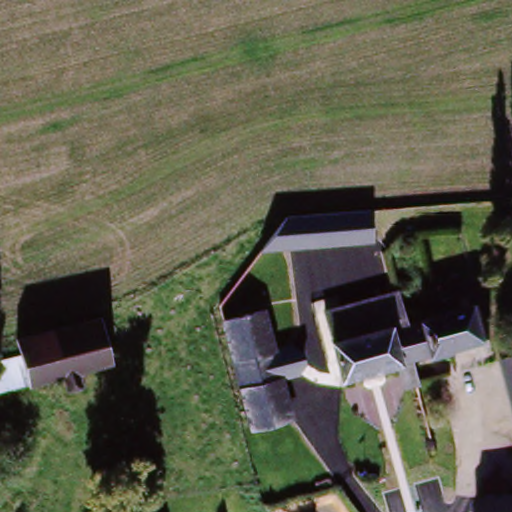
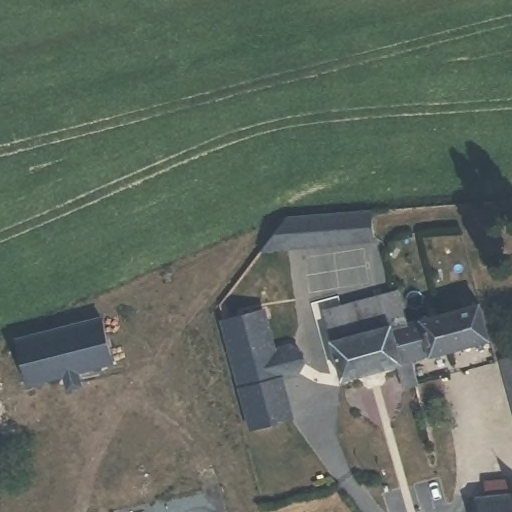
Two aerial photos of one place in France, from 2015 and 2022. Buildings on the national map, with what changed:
unchanged [(374,202),(375,208),(377,232),(305,244),(268,248),(296,211),(374,202)]
unchanged [(400,362),(342,376),(331,337),(326,311),(387,293),(396,291),(405,321),(418,317),(480,300),(490,336),(428,353),(418,356),(413,357),(417,380),(405,382),(400,362)]
unchanged [(282,420),(244,428),(221,320),(257,313),(266,353),(283,349),(292,357),(295,366),(290,378),(274,381),(282,420)]
unchanged [(17,339),(101,316),(113,359),(78,368),(81,377),(67,381),(65,371),(28,380),(21,355),(17,339)]
unchanged [(28,380),(0,387),(0,360),(21,355),(28,380)]
unchanged [(512,360),(512,391),(505,361),(512,360)]
unchanged [(481,478),(506,476),(508,492),(512,492),(512,512),(473,512),(471,496),(483,495),(481,478)]

